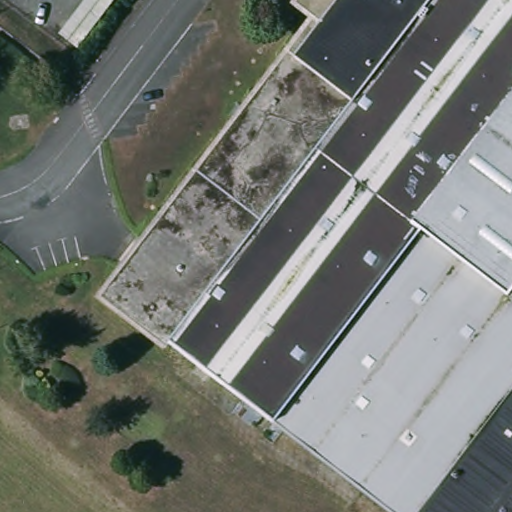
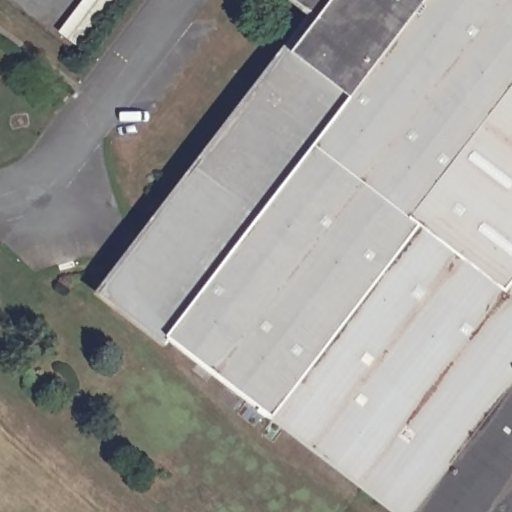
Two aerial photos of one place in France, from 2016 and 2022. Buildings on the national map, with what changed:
unchanged [(77,50),(55,32),(80,0),(117,0),(77,50)]
unchanged [(512,512),(395,512),(293,437),(161,338),(165,332),(107,289),(262,89),(332,0),(512,0),(512,512)]

